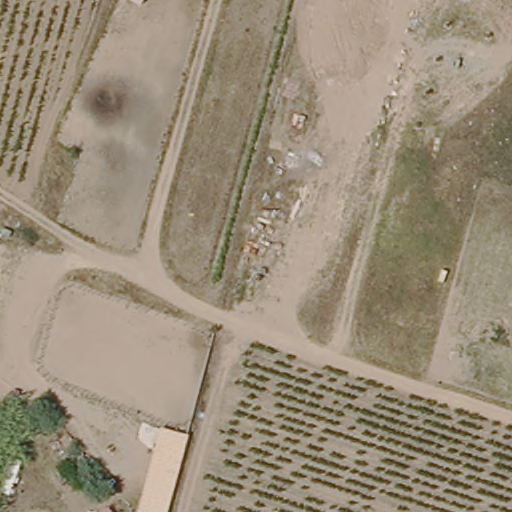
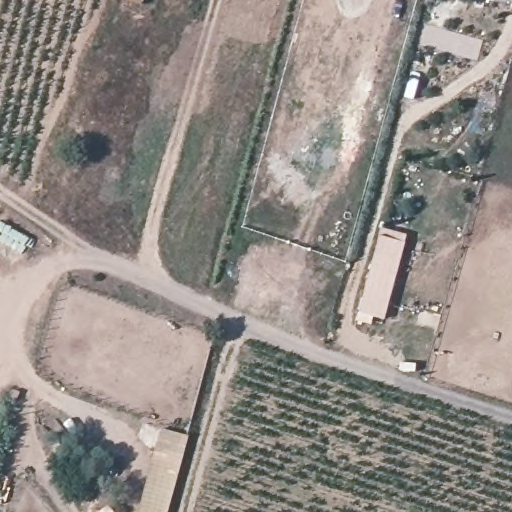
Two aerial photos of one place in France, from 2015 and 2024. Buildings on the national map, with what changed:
new [(358,311),(379,235),(382,229),(406,236),(404,244),(384,320),(372,317),(370,324),(357,320),(358,311)]
unchanged [(160,428),(188,436),(168,512),(138,512),(160,428)]

